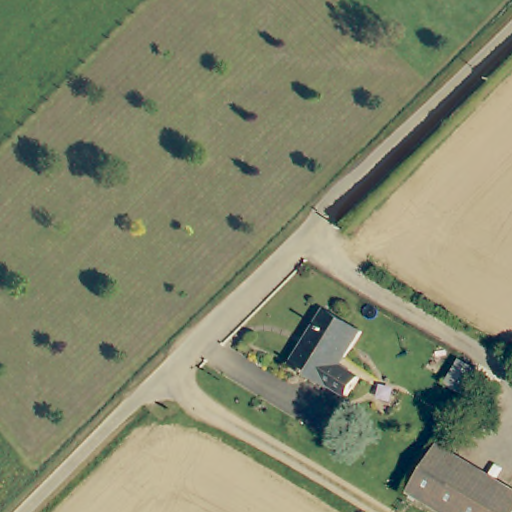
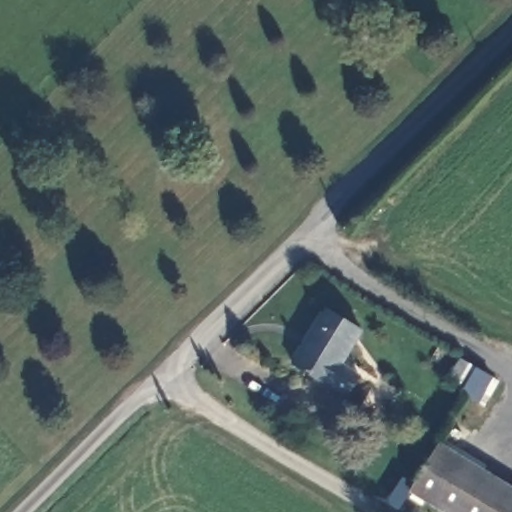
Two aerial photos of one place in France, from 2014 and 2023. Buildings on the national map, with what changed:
unchanged [(340,361),(359,374),(346,392),(328,381),(325,384),(293,363),(325,309),(359,329),(340,361)]
unchanged [(448,385),(463,360),(478,369),(464,394),(448,385)]
unchanged [(414,489),(441,447),(512,490),(512,512),(452,512),(414,489)]

